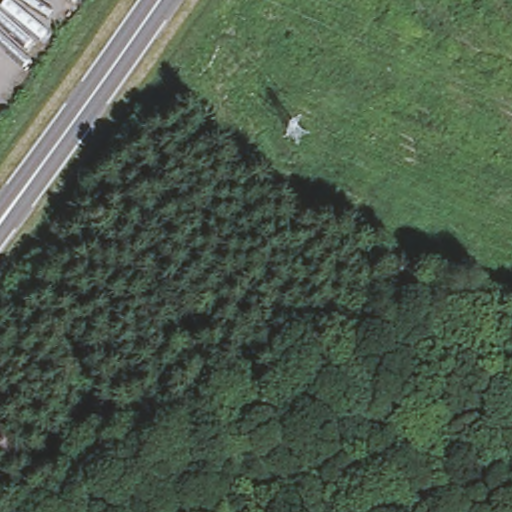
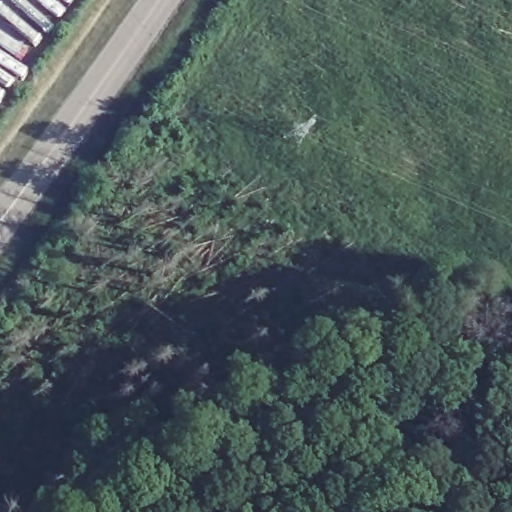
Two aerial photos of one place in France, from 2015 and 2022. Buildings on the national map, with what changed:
[]

